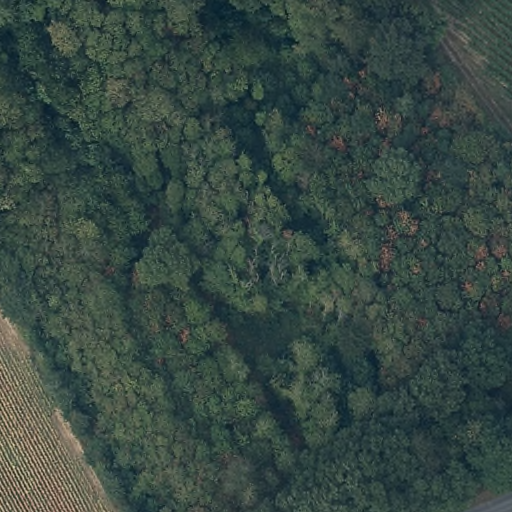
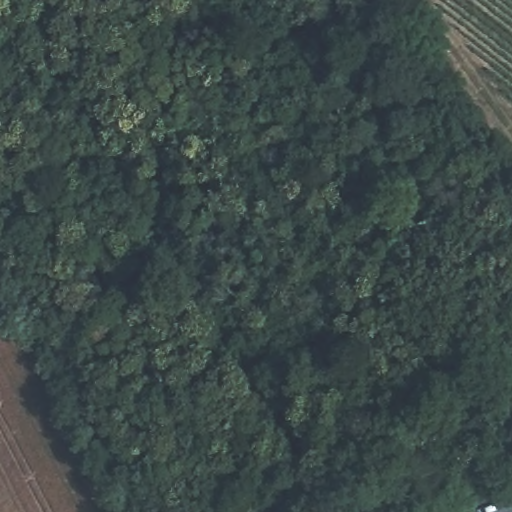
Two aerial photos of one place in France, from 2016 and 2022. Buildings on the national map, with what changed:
unchanged [(412,512),(398,512),(394,503),(404,494),(412,512)]

